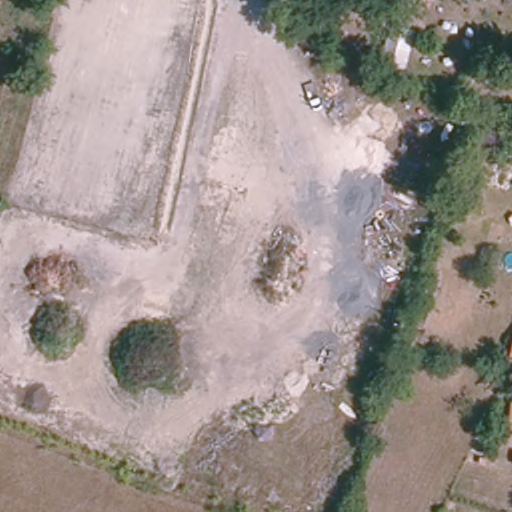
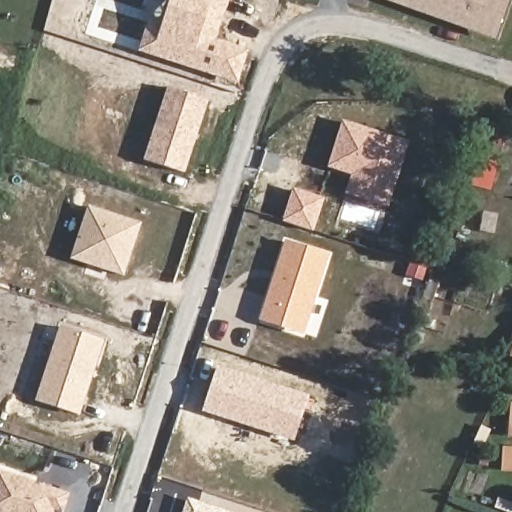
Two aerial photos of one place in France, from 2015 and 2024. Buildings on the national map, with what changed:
new [(250,51),(239,84),(141,52),(149,27),(160,31),(169,0),(230,0),(219,39),(250,51)]
demolished [(385,19),(387,16),(365,7),(368,0),(422,0),(435,6),(424,32),(394,19),(393,22),(389,28),(383,25),(385,19)]
new [(384,0),(510,0),(495,40),(384,0)]
new [(184,175),(144,159),(167,87),(209,100),(184,175)]
new [(389,207),(346,193),(352,175),(329,167),(342,120),(408,139),(389,207)]
new [(124,277),(70,259),(89,206),(142,222),(124,277)]
new [(301,334),(260,321),(287,240),(328,253),(301,334)]
new [(79,416),(34,401),(61,325),(105,341),(79,416)]
unchanged [(509,356),(512,348),(512,357),(509,356)]
new [(217,363),(309,395),(295,441),(201,413),(217,363)]
new [(0,471),(70,493),(64,512),(60,512),(53,510),(52,512),(0,512),(0,471)]
new [(187,497),(231,512),(182,512),(187,497)]

